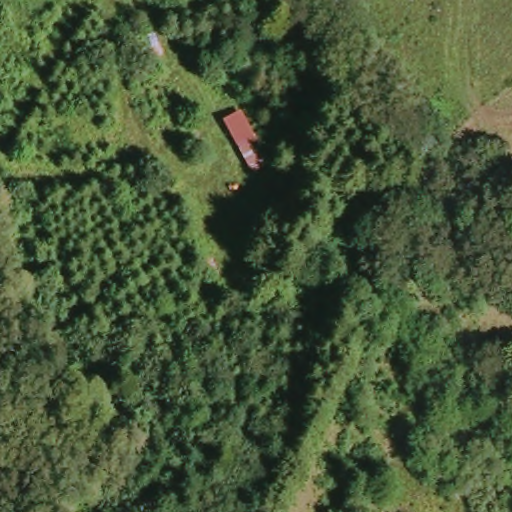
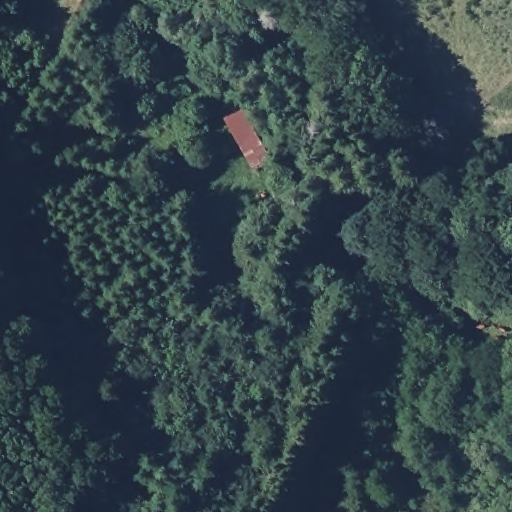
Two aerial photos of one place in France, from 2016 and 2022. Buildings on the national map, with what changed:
unchanged [(222,117),(241,108),(270,160),(251,170),(222,117)]

